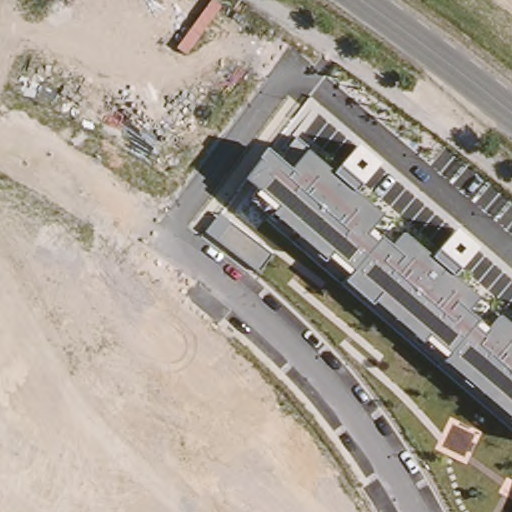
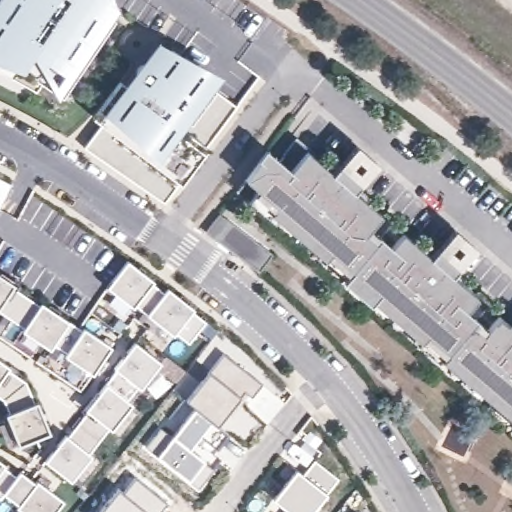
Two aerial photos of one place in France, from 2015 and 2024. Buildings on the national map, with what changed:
new [(59,94),(39,80),(31,89),(0,69),(0,0),(115,0),(119,9),(59,94)]
new [(224,74),(212,91),(240,109),(208,147),(181,180),(166,203),(82,149),(103,110),(158,42),(224,74)]
unchanged [(258,190),(245,180),(259,161),(256,159),(267,149),(292,169),(307,151),(333,174),(357,147),(378,164),(356,192),(382,215),(372,228),(392,245),(404,233),(431,256),(456,229),(477,248),(454,275),(478,297),(467,311),(488,328),(499,314),(512,327),(512,426),(255,195),(258,190)]
new [(258,275),(216,242),(205,234),(218,217),(229,225),(271,258),(258,275)]
new [(192,311),(205,322),(189,344),(173,333),(109,287),(129,262),(192,311)]
new [(41,302),(111,347),(93,371),(55,344),(51,348),(0,314),(0,274),(41,302)]
new [(161,361),(73,480),(45,460),(136,343),(161,361)]
new [(262,385),(252,397),(245,392),(239,397),(217,425),(195,408),(187,400),(209,373),(223,354),(262,385)]
new [(8,368),(26,384),(33,404),(39,402),(51,431),(18,443),(7,413),(3,401),(0,399),(0,362),(8,368)]
new [(228,434),(215,451),(196,437),(188,448),(203,461),(213,469),(199,487),(187,478),(159,454),(146,446),(160,430),(170,439),(195,408),(228,434)]
new [(290,510),(273,498),(295,470),(302,475),(313,459),(338,479),(327,492),(311,512),(288,512),(290,510)]
new [(4,464),(1,467),(15,478),(19,471),(35,484),(39,479),(65,501),(55,512),(25,512),(18,507),(20,503),(7,494),(1,501),(0,500),(0,461),(4,464)]
new [(118,488),(122,491),(135,476),(168,502),(160,512),(98,512),(118,488)]

